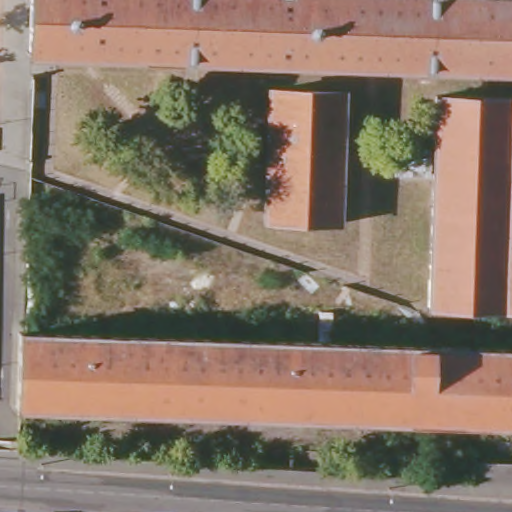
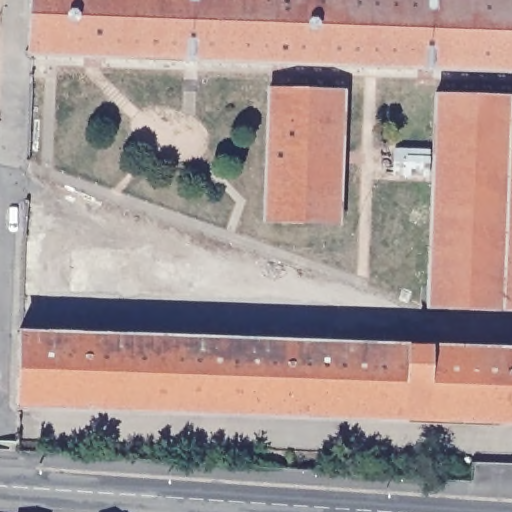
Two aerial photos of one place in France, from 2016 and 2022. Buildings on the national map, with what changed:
unchanged [(509,71),(108,57),(107,60),(103,60),(103,57),(32,55),(31,59),(28,59),(29,55),(27,55),(27,51),(32,51),(33,0),(512,0),(512,74),(509,74),(509,71)]
unchanged [(340,222),(265,220),(270,90),(344,93),(340,222)]
unchanged [(435,90),(512,92),(512,305),(427,300),(435,90)]
unchanged [(423,146),(422,170),(388,169),(389,145),(423,146)]
unchanged [(17,408),(20,334),(22,334),(512,351),(512,423),(19,408),(17,408)]
unchanged [(360,465),(360,475),(348,475),(348,465),(360,465)]

